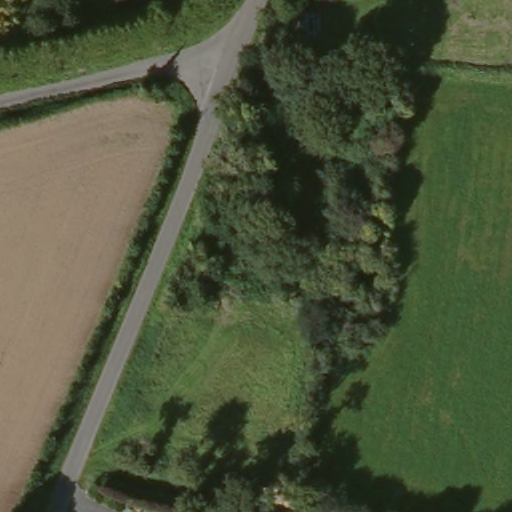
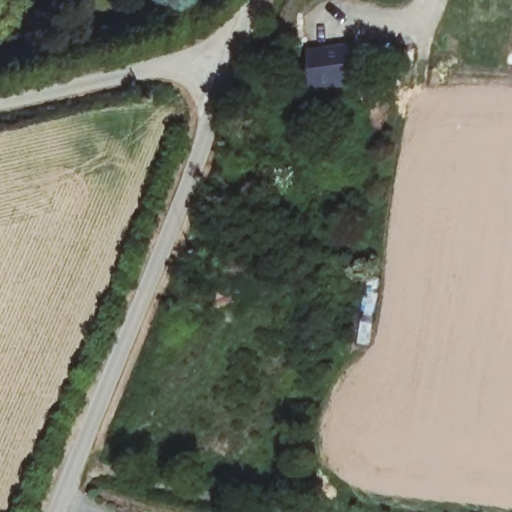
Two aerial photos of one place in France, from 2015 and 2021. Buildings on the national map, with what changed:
new [(363,84),(311,91),(307,48),(358,41),(363,84)]
unchanged [(365,48),(395,44),(398,65),(368,69),(365,48)]
unchanged [(290,255),(291,244),(310,244),(310,256),(290,255)]

